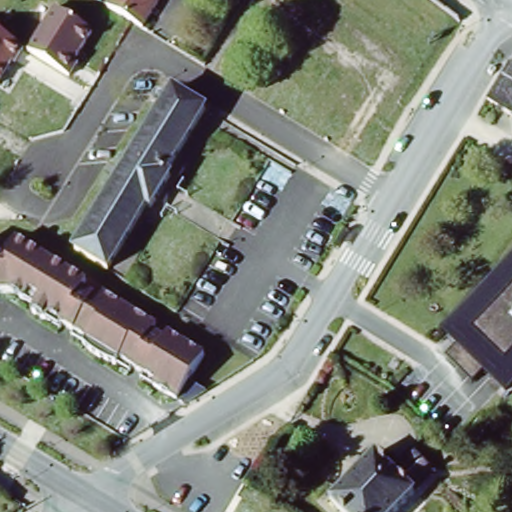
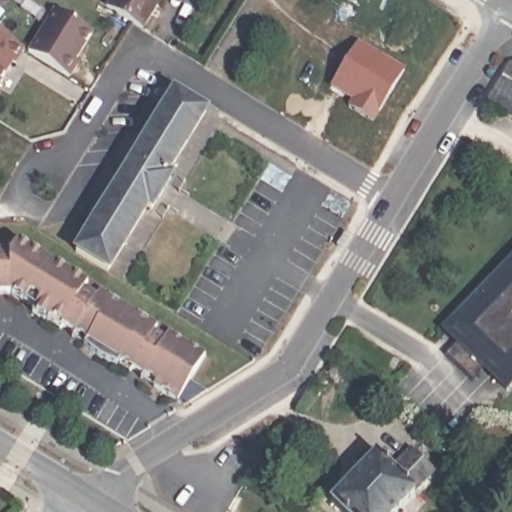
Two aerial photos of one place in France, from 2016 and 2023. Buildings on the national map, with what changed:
unchanged [(111,0),(161,0),(145,28),(107,8),(111,0)]
unchanged [(95,32),(69,80),(25,55),(52,11),(95,32)]
unchanged [(0,86),(0,37),(22,48),(0,86)]
new [(359,38),(407,68),(375,117),(355,105),(360,97),(332,80),(359,38)]
unchanged [(486,104),(507,68),(512,71),(512,120),(486,104)]
unchanged [(207,109),(167,175),(172,179),(162,194),(152,210),(148,207),(108,273),(77,253),(176,90),(207,109)]
unchanged [(160,382),(147,374),(151,370),(139,363),(136,367),(124,359),(123,360),(113,357),(105,352),(96,346),(89,340),(90,338),(77,331),(80,326),(68,319),(65,323),(53,316),(37,306),(40,301),(30,295),(15,286),(0,286),(0,233),(22,233),(94,278),(97,274),(111,282),(108,287),(165,322),(167,318),(181,326),(179,330),(214,352),(197,377),(214,388),(191,401),(184,397),(160,382)]
unchanged [(506,389),(490,374),(495,369),(489,364),(472,379),(445,352),(461,335),(452,326),(512,267),(512,382),(506,389)]
unchanged [(374,450),(386,462),(391,457),(395,461),(410,446),(432,469),(390,512),(343,512),(327,497),(374,450)]

